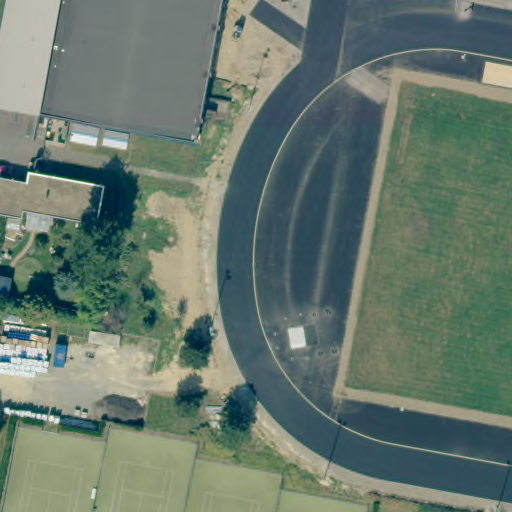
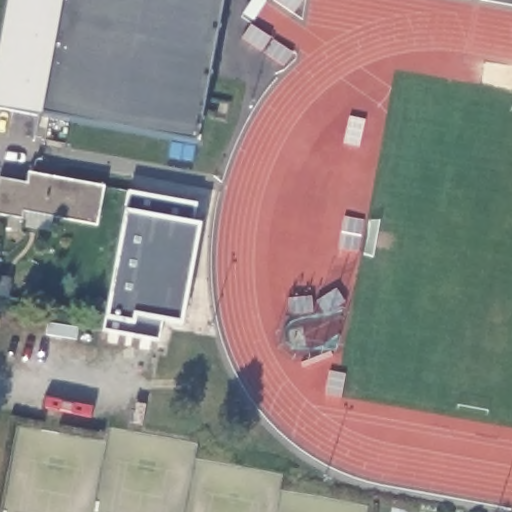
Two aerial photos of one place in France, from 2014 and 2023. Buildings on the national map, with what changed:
unchanged [(232,0),(206,145),(0,109),(4,85),(8,63),(20,0),(232,0)]
unchanged [(33,211),(31,218),(1,213),(8,177),(36,182),(38,172),(112,186),(106,225),(33,211)]
new [(195,205),(193,224),(200,225),(180,325),(161,320),(158,342),(101,332),(104,318),(124,212),(126,192),(195,205)]

